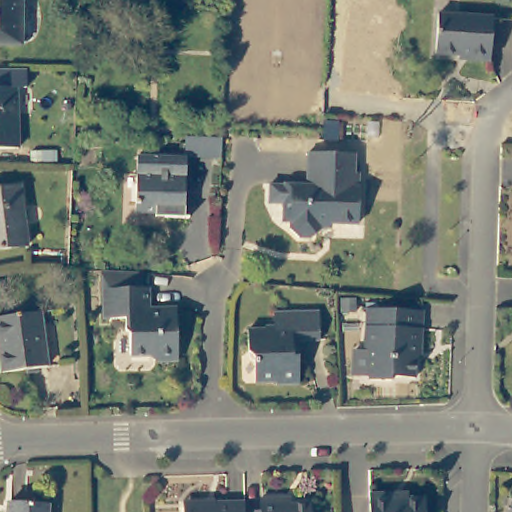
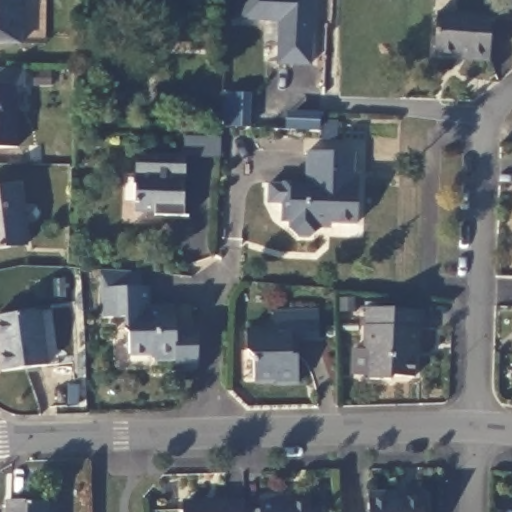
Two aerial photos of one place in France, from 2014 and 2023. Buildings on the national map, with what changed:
unchanged [(14,45),(0,44),(0,0),(14,0),(14,45)]
new [(311,67),(277,65),(280,24),(240,22),(241,0),(314,0),(311,67)]
unchanged [(488,20),(484,64),(462,62),(462,57),(430,55),(433,16),(488,20)]
unchanged [(12,147),(0,147),(0,93),(11,92),(12,147)]
unchanged [(162,211),(162,207),(133,206),(134,167),(135,149),(142,149),(185,151),(184,169),(184,185),(182,212),(162,211)]
unchanged [(264,184),(301,185),(303,152),(350,154),(348,174),(353,175),(352,224),(315,223),(315,230),(305,237),(293,237),(285,229),(285,222),(277,221),(278,203),(263,202),(264,184)]
unchanged [(24,244),(0,244),(0,187),(23,186),(24,244)]
unchanged [(122,332),(122,320),(100,318),(101,268),(137,272),(142,272),(140,290),(147,291),(145,316),(154,316),(154,311),(173,312),(170,362),(150,361),(151,357),(126,356),(127,333),(122,332)]
unchanged [(397,377),(371,376),(372,347),(367,347),(370,306),(423,308),(421,346),(418,346),(417,375),(397,374),(397,377)]
unchanged [(47,366),(2,374),(0,360),(0,318),(39,312),(47,366)]
unchanged [(295,357),(295,385),(271,384),(271,382),(250,381),(250,361),(242,352),(243,330),(259,331),(259,327),(270,327),(270,312),(288,312),(315,313),(315,342),(288,341),(288,357),(295,357)]
unchanged [(392,493),(392,497),(426,497),(426,512),(372,512),(372,493),(392,493)]
unchanged [(261,497),(281,497),(281,501),(310,501),(310,512),(245,512),(245,508),(261,508),(261,497)]
unchanged [(215,503),(215,498),(245,498),(245,508),(245,512),(186,512),(186,503),(215,503)]
unchanged [(44,512),(5,512),(5,499),(44,502),(44,512)]

